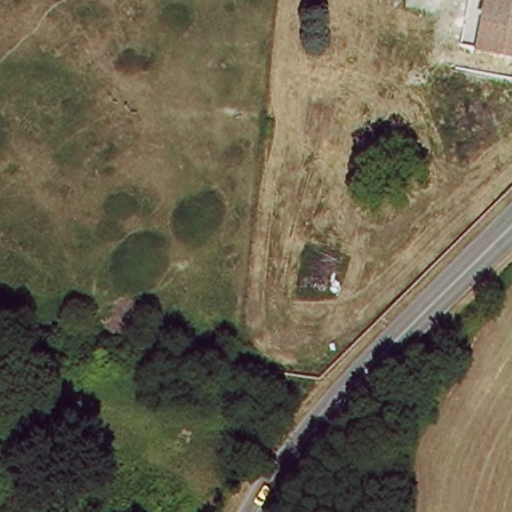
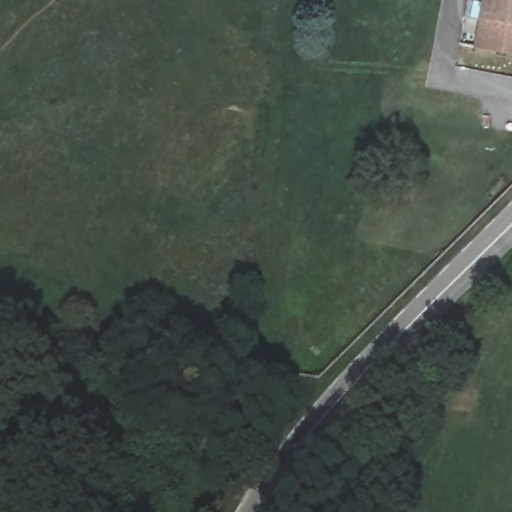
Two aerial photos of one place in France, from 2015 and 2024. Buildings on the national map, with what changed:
unchanged [(483,0),(512,0),(512,27),(479,20),(483,0)]

